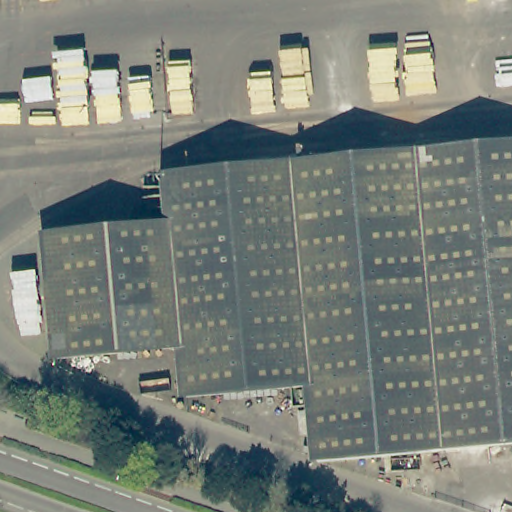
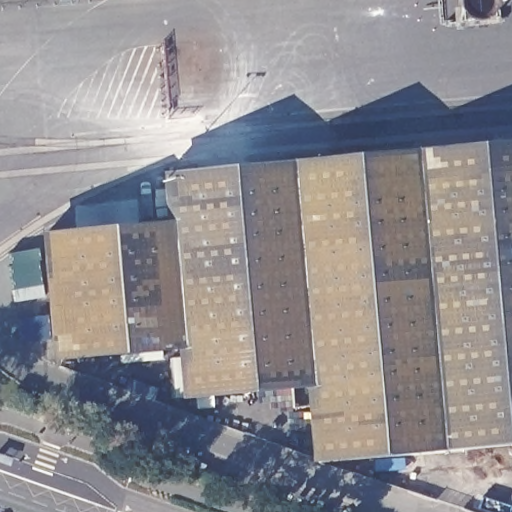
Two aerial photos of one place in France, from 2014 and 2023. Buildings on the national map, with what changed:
unchanged [(512,142),(512,443),(443,450),(417,151),(512,142)]
unchanged [(417,151),(443,450),(320,461),(313,388),(293,162),(417,151)]
unchanged [(170,173),(242,167),(293,162),(313,388),(306,388),(192,398),(187,350),(174,226),(170,173)]
unchanged [(187,350),(62,361),(51,238),(174,226),(187,350)]

